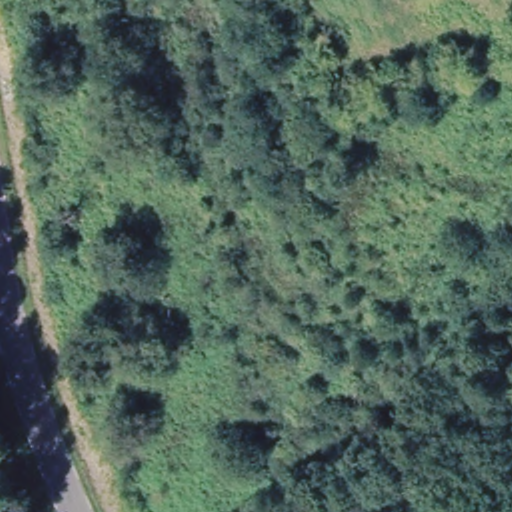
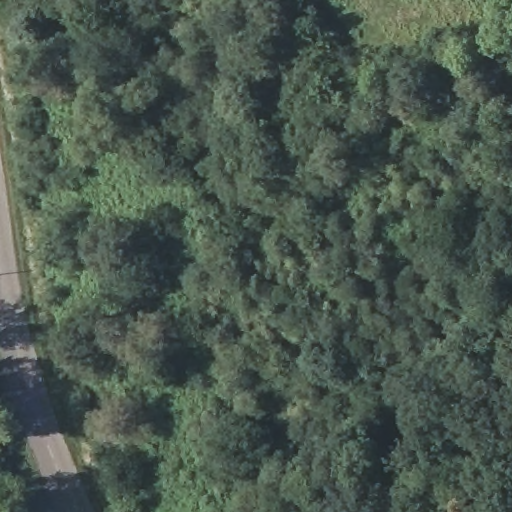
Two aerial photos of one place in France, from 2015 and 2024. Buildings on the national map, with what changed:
[]

